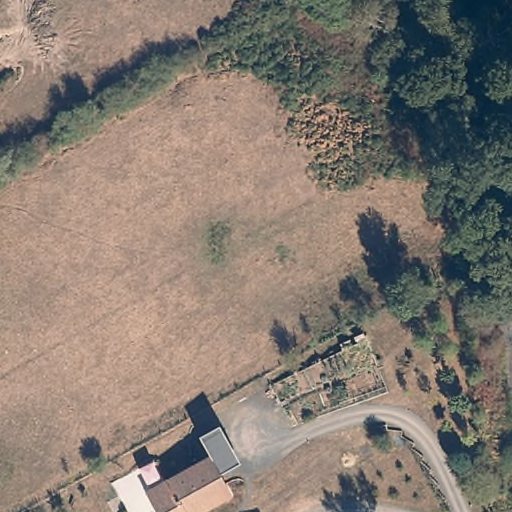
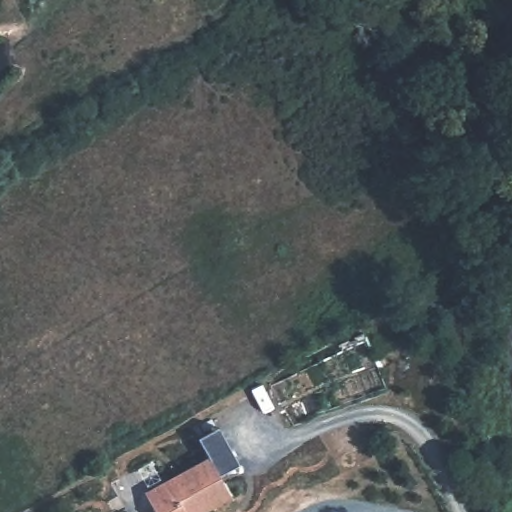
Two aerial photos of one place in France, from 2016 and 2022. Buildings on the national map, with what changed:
unchanged [(146,493),(210,457),(232,495),(202,512),(156,512),(146,493)]

